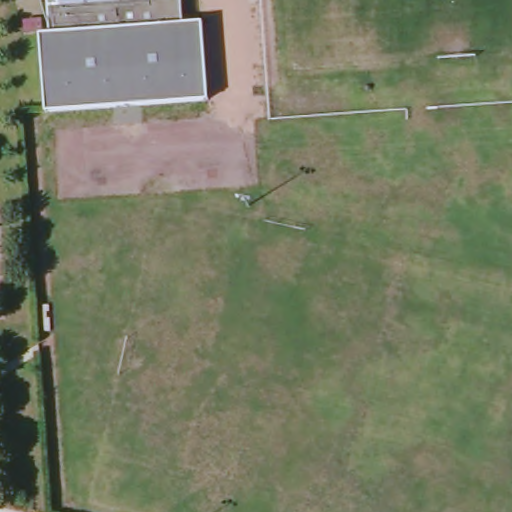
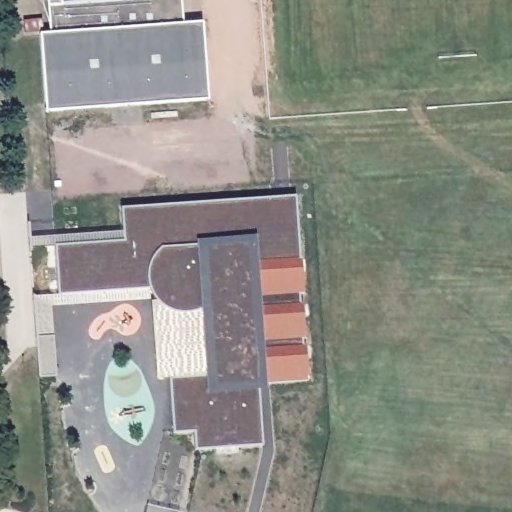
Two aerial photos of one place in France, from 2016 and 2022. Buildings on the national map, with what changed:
unchanged [(185,24),(204,22),(210,100),(47,112),(42,34),(52,34),(49,1),(44,1),(43,0),(183,0),(185,24)]
new [(215,201),(212,185),(225,184),(229,200),(295,196),(303,293),(299,293),(300,304),(302,304),(305,338),(302,338),(307,379),(264,382),(264,390),(261,390),(264,444),(195,449),(195,432),(174,433),(170,377),(205,375),(202,311),(187,313),(170,310),(160,305),(149,289),(59,293),(56,245),(124,240),(122,207),(215,201)]

